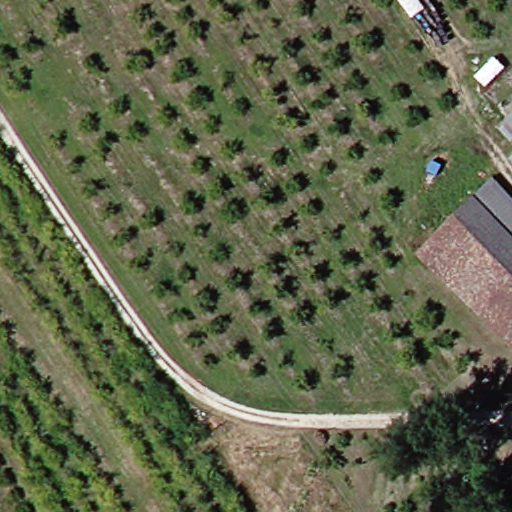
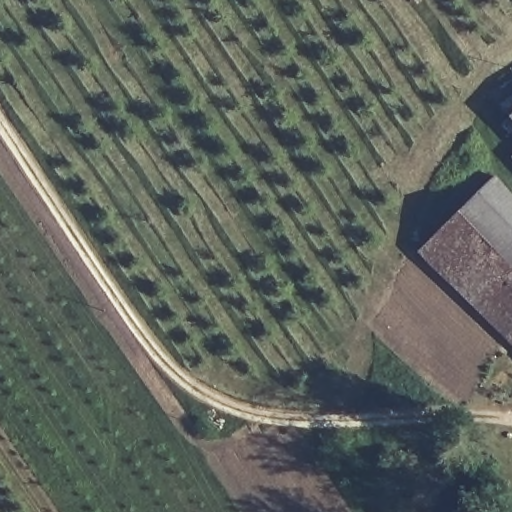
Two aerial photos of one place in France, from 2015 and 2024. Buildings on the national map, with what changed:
unchanged [(490,154),(486,151),(482,146),(505,121),(512,114),(512,162),(497,148),(490,154)]
unchanged [(484,179),(512,206),(512,356),(412,254),(484,179)]

